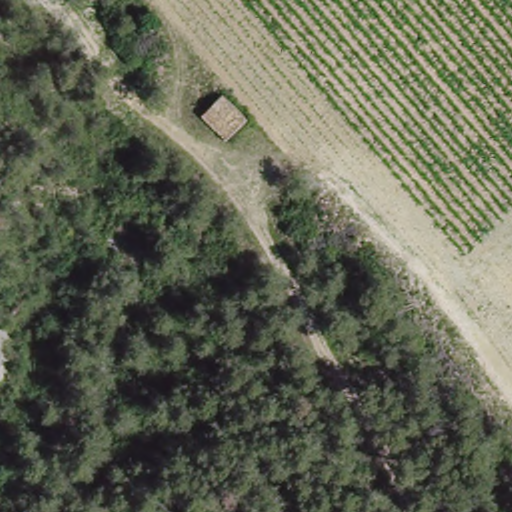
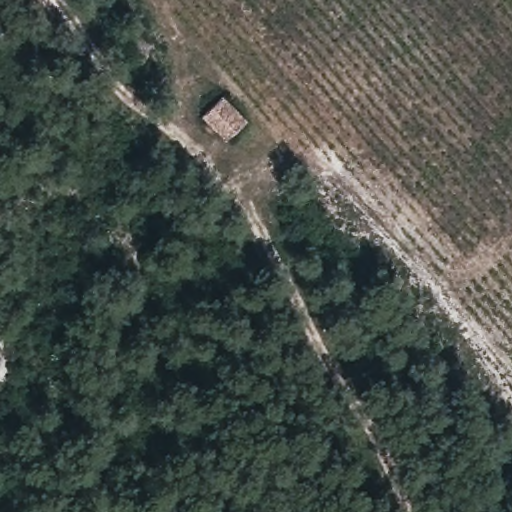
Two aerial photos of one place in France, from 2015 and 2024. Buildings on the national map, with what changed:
unchanged [(245,119),(221,140),(198,116),(220,96),(245,119)]

